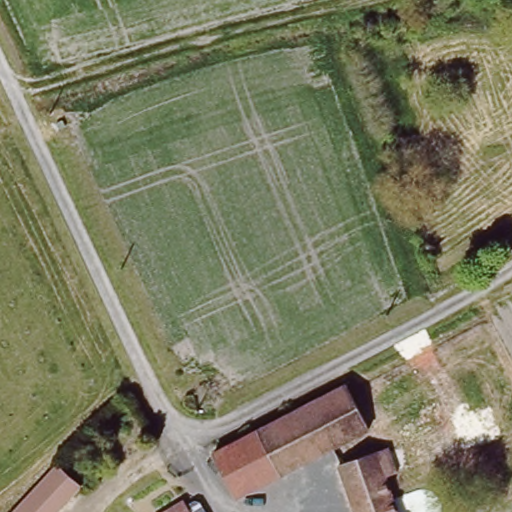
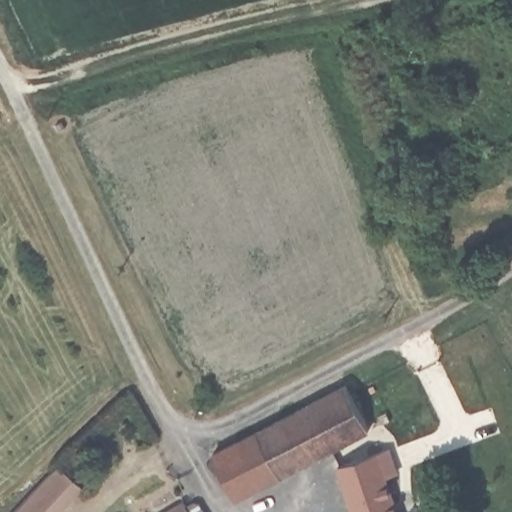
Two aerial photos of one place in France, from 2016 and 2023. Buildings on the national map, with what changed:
unchanged [(345,386),(365,429),(233,498),(211,453),(345,386)]
unchanged [(386,445),(395,467),(384,473),(398,512),(353,512),(337,466),(386,445)]
unchanged [(54,462),(75,485),(48,512),(3,512),(54,462)]
unchanged [(188,512),(165,512),(182,502),(188,512)]

